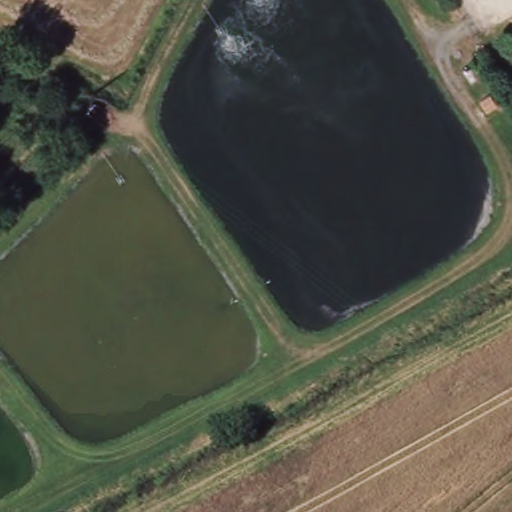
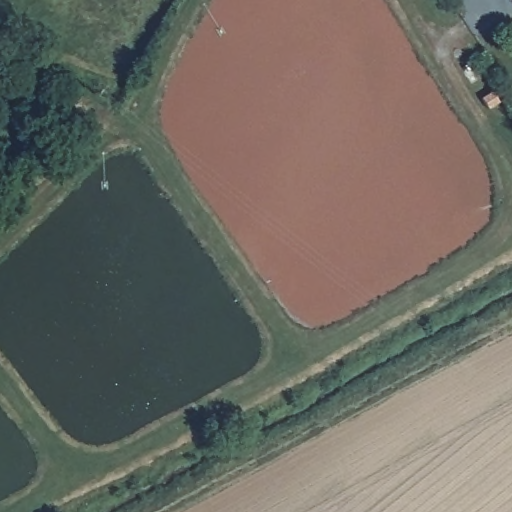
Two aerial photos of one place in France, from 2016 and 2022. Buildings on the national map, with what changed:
[]

